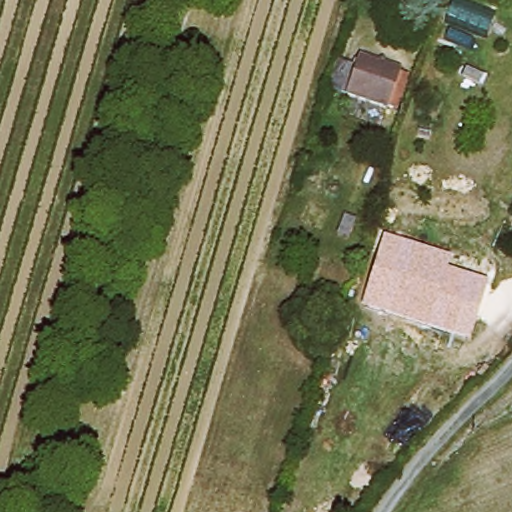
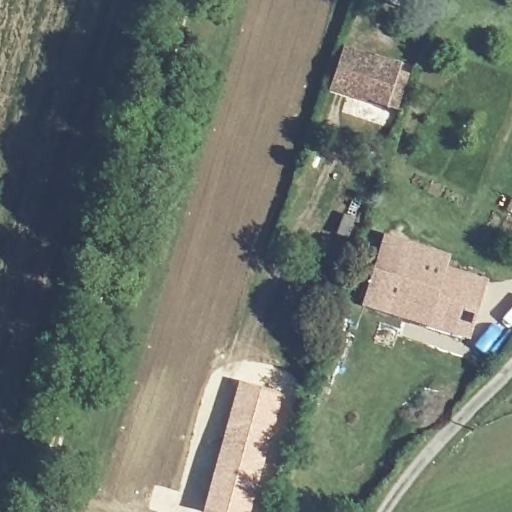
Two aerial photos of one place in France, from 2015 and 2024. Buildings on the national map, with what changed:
unchanged [(391,116),(355,104),(367,67),(403,79),(391,116)]
unchanged [(358,76),(349,101),(337,97),(345,72),(358,76)]
unchanged [(451,256),(446,269),(488,282),(467,341),(361,306),(383,237),(451,256)]
new [(287,395),(254,512),(201,512),(239,380),(287,395)]

